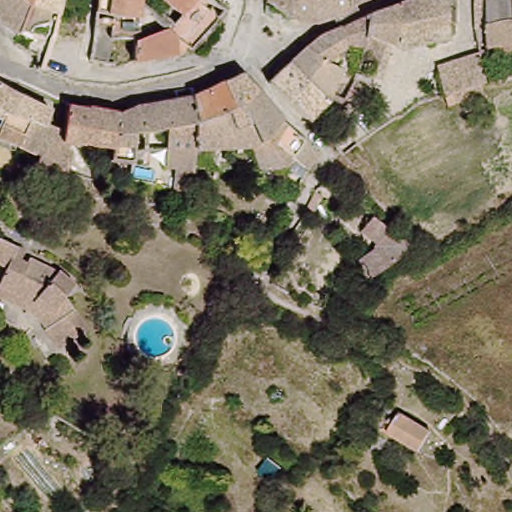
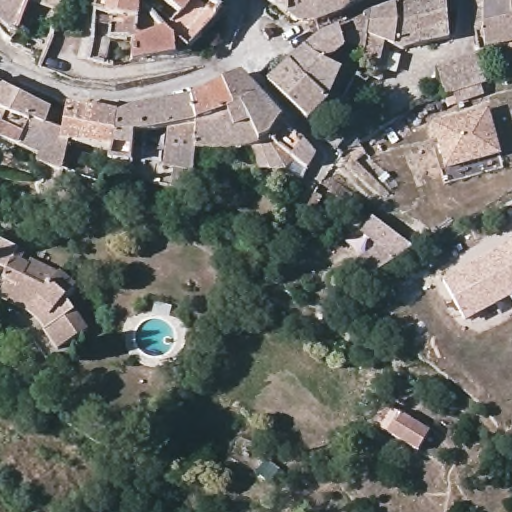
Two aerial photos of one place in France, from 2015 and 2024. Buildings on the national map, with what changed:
unchanged [(24,0),(23,4),(22,13),(18,38),(0,25),(0,0),(24,0)]
unchanged [(136,24),(96,18),(96,0),(148,0),(149,1),(171,19),(182,6),(174,0),(221,0),(221,4),(226,6),(209,26),(197,41),(173,45),(134,49),(136,24)]
unchanged [(311,25),(288,14),(276,9),(265,4),(265,0),(364,0),(338,13),(311,25)]
unchanged [(400,51),(387,46),(399,6),(418,0),(444,0),(450,38),(400,51)]
unchanged [(479,20),(479,0),(508,0),(508,19),(479,20)]
unchanged [(508,0),(512,0),(512,18),(508,19),(508,0)]
unchanged [(364,51),(371,19),(399,6),(387,46),(383,45),(378,66),(361,61),(364,51)]
unchanged [(479,20),(508,19),(512,18),(512,42),(479,49),(479,20)]
unchanged [(371,19),(364,51),(342,51),(336,56),(313,40),(371,19)]
unchanged [(320,99),(282,66),(313,40),(336,56),(346,63),(325,103),(320,99)]
unchanged [(436,58),(472,50),(474,83),(441,95),(436,58)]
unchanged [(263,84),(282,66),(320,99),(302,121),(263,84)]
unchanged [(135,134),(141,133),(133,111),(145,108),(184,103),(187,101),(209,91),(214,89),(239,76),(257,96),(270,111),(274,116),(277,119),(298,139),(312,153),(305,165),(290,153),(268,135),(262,144),(256,144),(233,144),(211,144),(208,163),(188,160),(186,170),(183,181),(156,174),(149,196),(123,188),(129,166),(126,165),(135,134)]
unchanged [(21,117),(13,144),(0,139),(0,86),(47,111),(41,125),(21,117)]
unchanged [(115,118),(104,151),(72,146),(54,143),(56,132),(63,109),(81,113),(115,116),(115,118)]
new [(488,109),(502,155),(448,171),(434,124),(488,109)]
unchanged [(115,118),(133,111),(141,133),(135,134),(126,165),(123,165),(101,159),(104,151),(115,118)]
unchanged [(408,250),(362,279),(351,263),(372,248),(355,236),(368,219),(408,250)]
new [(466,323),(441,279),(512,239),(512,296),(466,323)]
unchanged [(20,309),(0,300),(0,241),(19,250),(14,260),(20,263),(15,275),(35,284),(50,268),(66,281),(55,294),(79,327),(51,349),(36,330),(39,327),(36,324),(20,309)]
unchanged [(427,433),(415,451),(383,430),(396,412),(427,433)]

